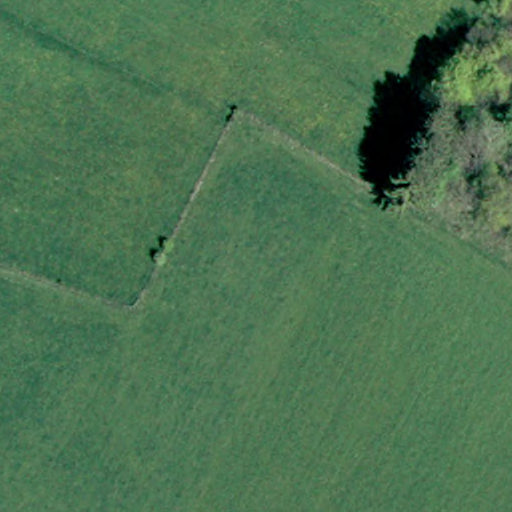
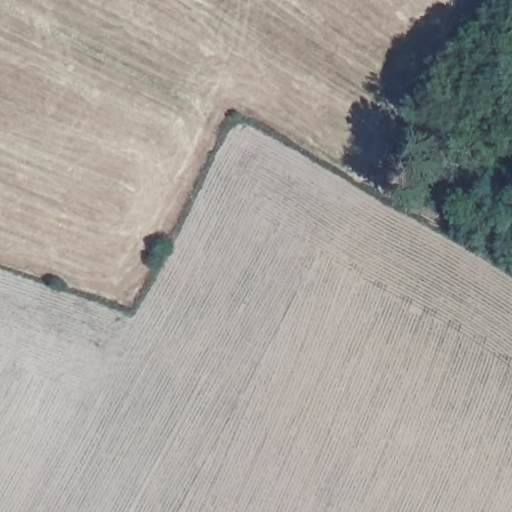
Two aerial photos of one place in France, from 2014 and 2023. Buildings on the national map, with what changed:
[]

